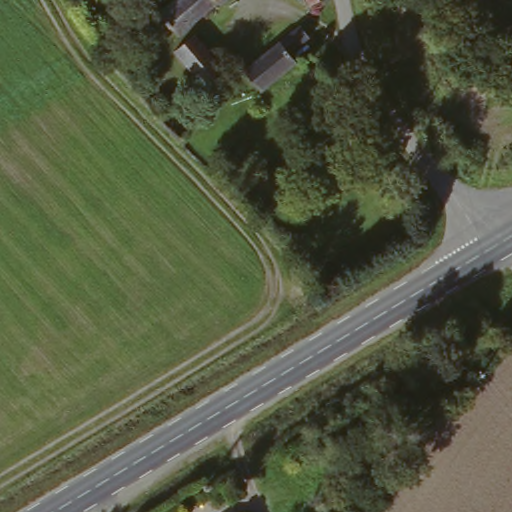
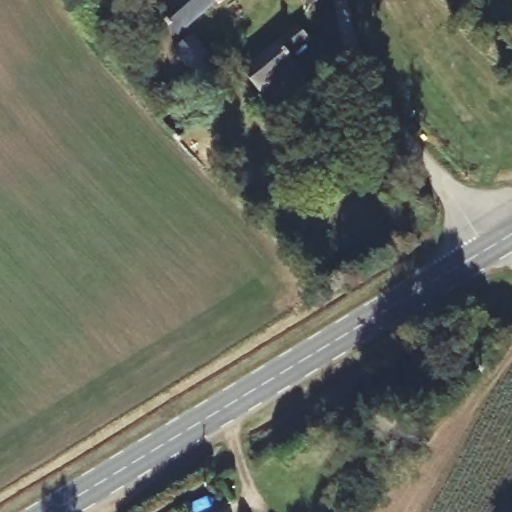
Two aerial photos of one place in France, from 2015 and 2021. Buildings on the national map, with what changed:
unchanged [(160,18),(183,0),(235,0),(220,12),(217,9),(177,41),(160,18)]
unchanged [(313,11),(306,0),(330,0),(313,11)]
unchanged [(240,82),(293,30),(302,39),(297,42),(289,51),(284,58),(290,65),(256,99),(240,82)]
unchanged [(177,56),(184,49),(195,40),(222,73),(205,86),(177,56)]

